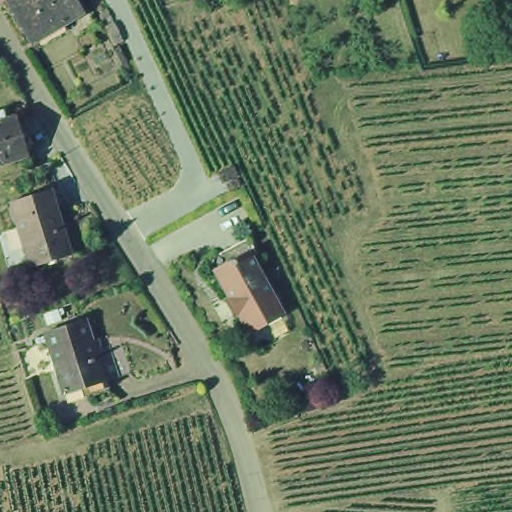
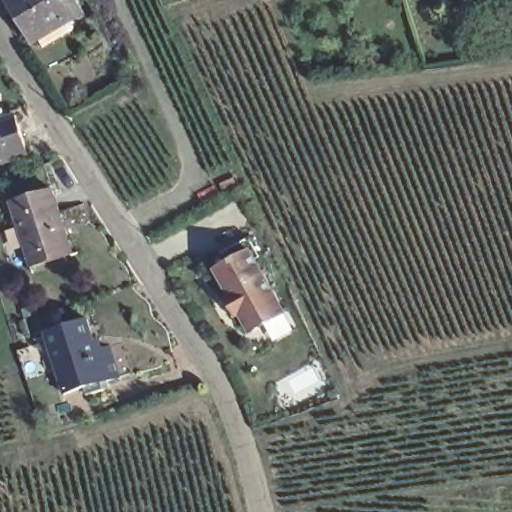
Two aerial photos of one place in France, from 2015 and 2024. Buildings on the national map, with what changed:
unchanged [(25,41),(0,3),(0,1),(2,0),(63,0),(71,14),(56,23),(61,31),(31,51),(25,41)]
unchanged [(8,119),(12,129),(6,131),(18,166),(0,172),(0,122),(8,119)]
unchanged [(28,269),(10,210),(53,197),(71,256),(28,269)]
unchanged [(233,328),(223,312),(226,311),(211,283),(204,272),(219,263),(239,252),(246,264),(275,328),(261,337),(258,332),(255,333),(242,340),(235,327),(233,328)]
unchanged [(275,328),(246,265),(280,325),(275,328)]
unchanged [(128,371),(115,375),(103,379),(105,387),(80,394),(78,387),(58,393),(39,332),(83,319),(89,339),(94,338),(98,347),(105,345),(118,341),(128,371)]

